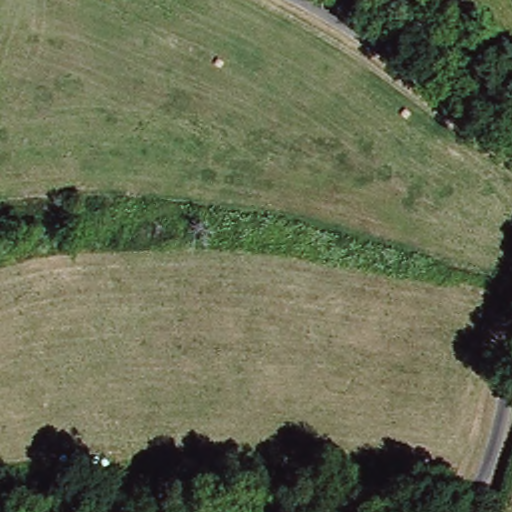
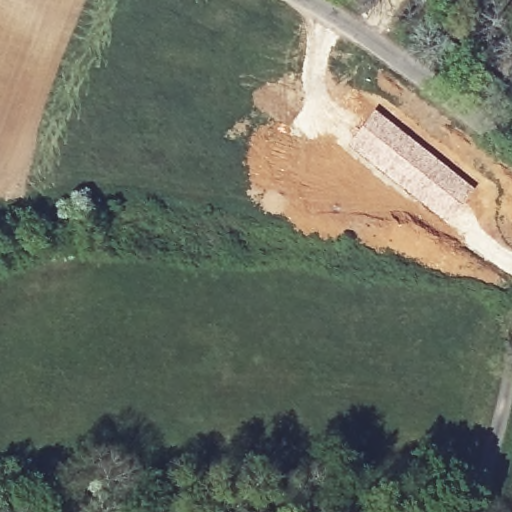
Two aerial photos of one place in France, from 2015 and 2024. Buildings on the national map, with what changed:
new [(376,109),(474,189),(446,223),(346,146),(376,109)]

